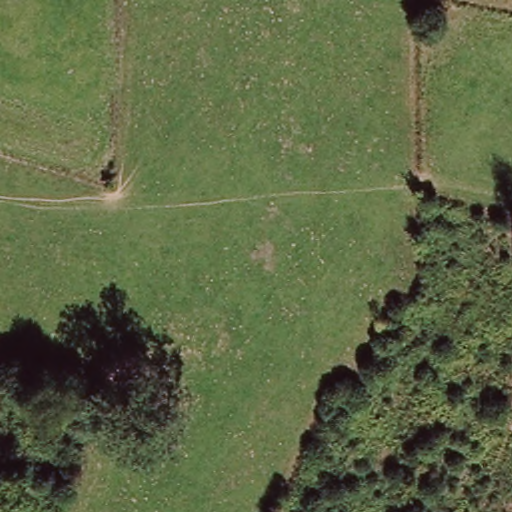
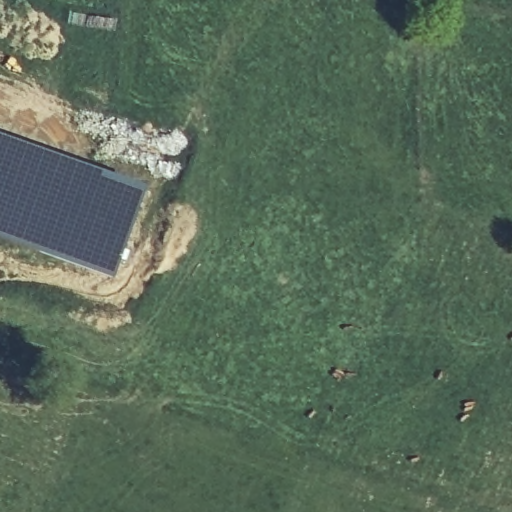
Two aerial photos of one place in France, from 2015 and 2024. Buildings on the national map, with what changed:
new [(142,197),(112,280),(0,241),(0,145),(70,169),(142,197)]

